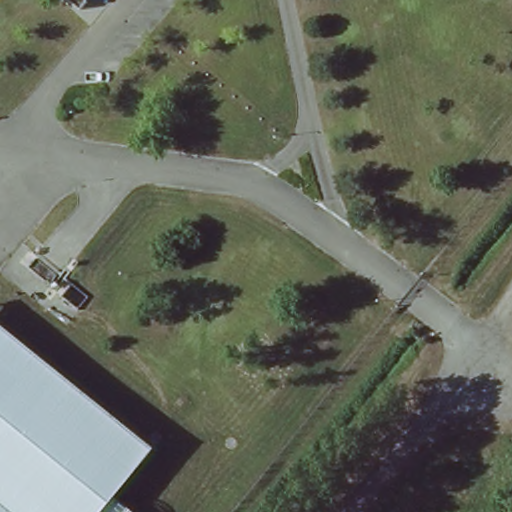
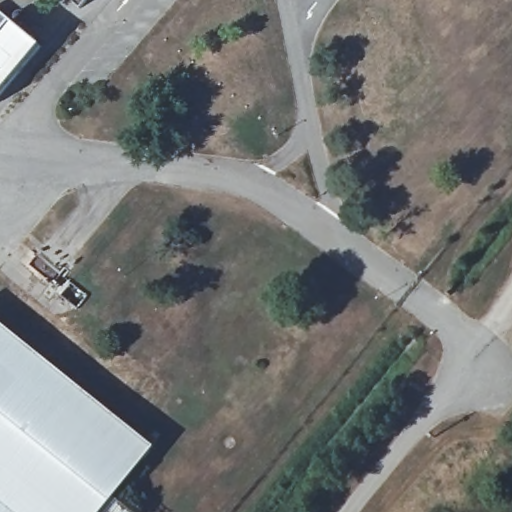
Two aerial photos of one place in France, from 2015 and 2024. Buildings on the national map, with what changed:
unchanged [(82,0),(87,0),(85,3),(82,0)]
new [(42,46),(0,97),(0,13),(13,23),(42,46)]
unchanged [(114,497),(102,512),(0,512),(0,328),(150,448),(114,497)]
unchanged [(114,497),(134,512),(102,512),(114,497)]

